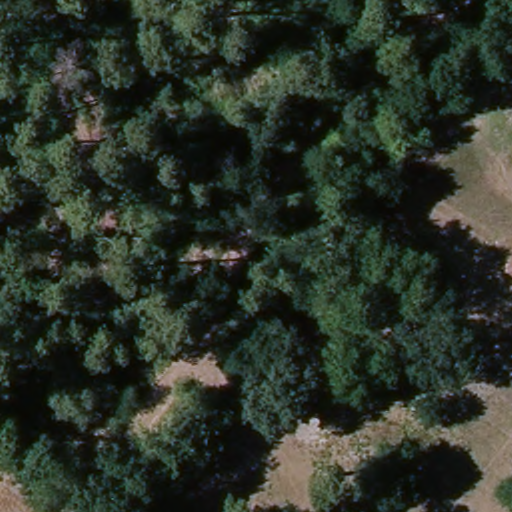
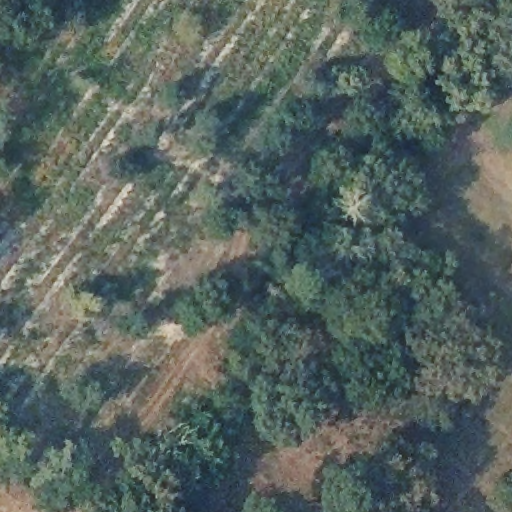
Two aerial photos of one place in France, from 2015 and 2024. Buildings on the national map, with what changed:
unchanged [(512,262),(512,269),(509,267),(512,262)]
unchanged [(436,511),(436,512),(428,512),(436,511)]

